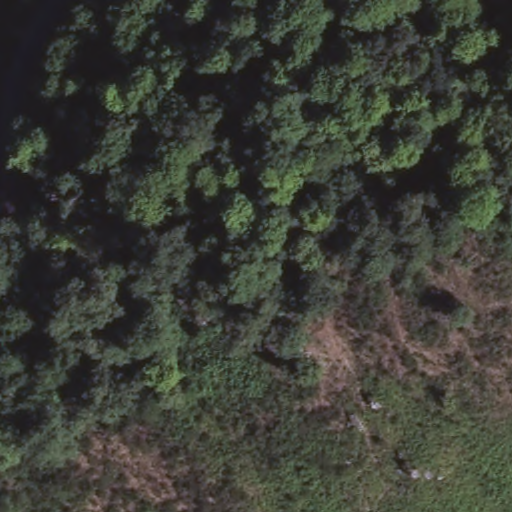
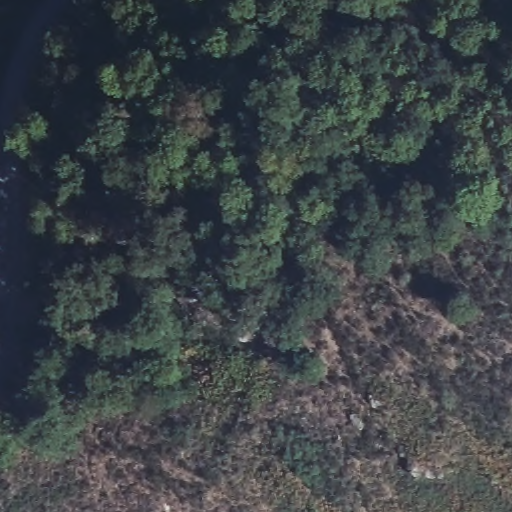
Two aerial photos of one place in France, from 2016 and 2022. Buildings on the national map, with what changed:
[]

